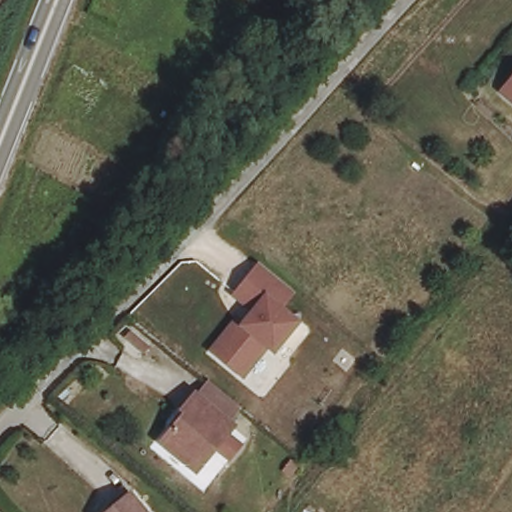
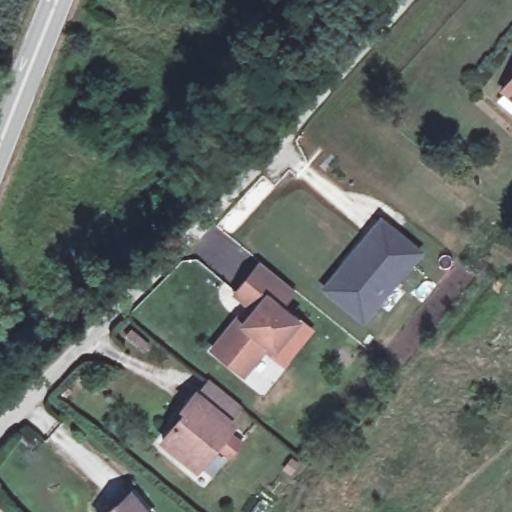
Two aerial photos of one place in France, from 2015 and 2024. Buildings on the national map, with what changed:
unchanged [(504,89),(512,79),(512,95),(504,89)]
new [(380,216),(425,252),(364,326),(320,290),(380,216)]
unchanged [(298,290),(285,307),(304,322),(275,355),(270,349),(246,377),(210,350),(236,315),(244,319),(252,310),(234,296),(261,261),(298,290)]
unchanged [(212,436),(216,440),(191,469),(158,441),(182,412),(178,408),(190,393),(193,396),(204,382),(233,407),(222,420),(224,422),(212,436)]
unchanged [(146,512),(107,512),(130,492),(146,512)]

